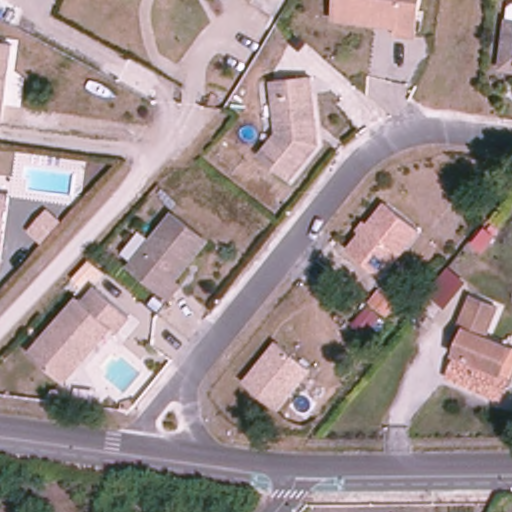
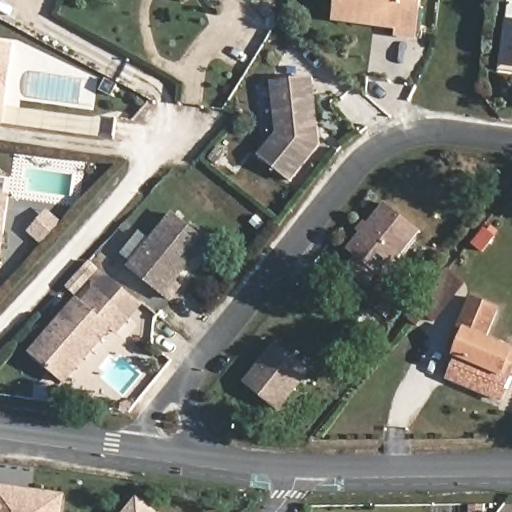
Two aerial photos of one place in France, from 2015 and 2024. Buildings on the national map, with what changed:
unchanged [(334,15),(336,0),(418,0),(412,36),(395,33),(397,26),(373,22),(334,15)]
unchanged [(507,17),(512,18),(512,66),(502,65),(507,17)]
unchanged [(13,45),(3,123),(0,123),(0,43),(13,45)]
unchanged [(261,154),(278,132),(269,80),(307,74),(319,142),(291,178),(261,154)]
unchanged [(7,197),(0,252),(0,196),(7,197)]
unchanged [(382,204),(413,228),(416,231),(378,278),(375,275),(345,251),(382,204)]
unchanged [(129,270),(171,217),(205,244),(174,284),(180,289),(169,302),(129,270)]
unchanged [(84,303),(97,287),(130,314),(117,330),(112,326),(68,383),(35,356),(80,299),(84,303)]
unchanged [(452,377),(463,350),(456,347),(462,336),(479,298),(504,309),(490,340),(512,350),(512,388),(507,400),(498,396),(452,377)]
unchanged [(273,407),(243,383),(275,342),(305,366),(308,368),(275,409),(273,407)]
new [(66,494),(63,512),(0,512),(0,485),(66,494)]
new [(156,512),(124,512),(137,496),(156,512)]

